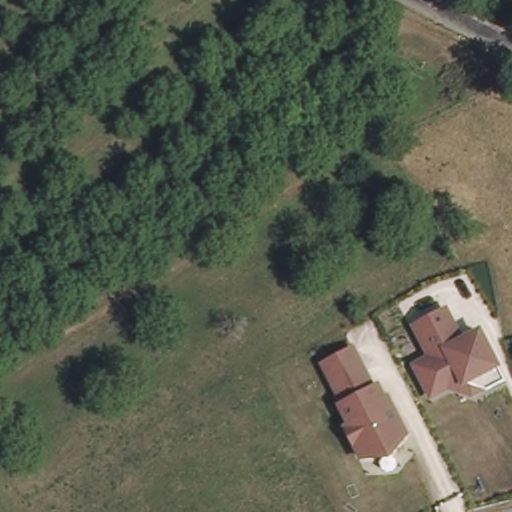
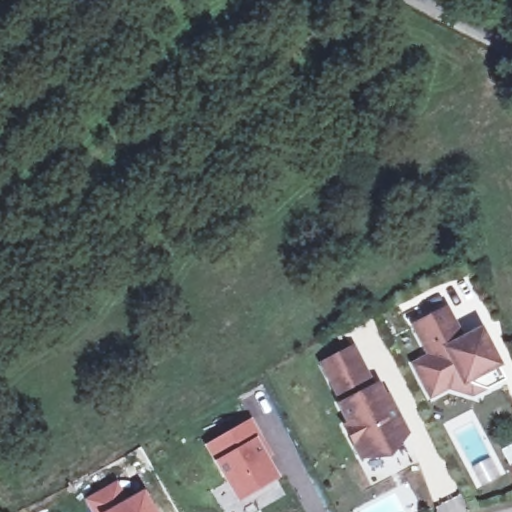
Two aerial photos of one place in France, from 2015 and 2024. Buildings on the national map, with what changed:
unchanged [(460,335),(483,327),(500,365),(506,378),(471,394),(452,387),(429,395),(413,359),(424,354),(413,323),(448,307),(460,335)]
unchanged [(371,387),(383,383),(406,433),(389,456),(357,458),(335,402),(318,358),(352,346),(371,387)]
new [(238,502),(206,445),(252,420),(273,456),(269,459),(280,478),(238,502)]
new [(119,481),(130,498),(144,490),(156,512),(91,512),(85,499),(119,481)]

